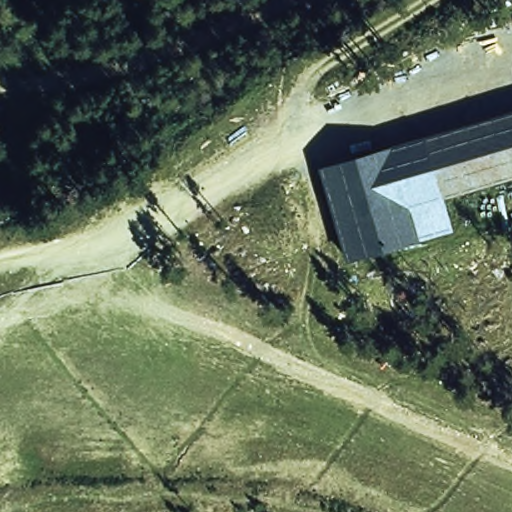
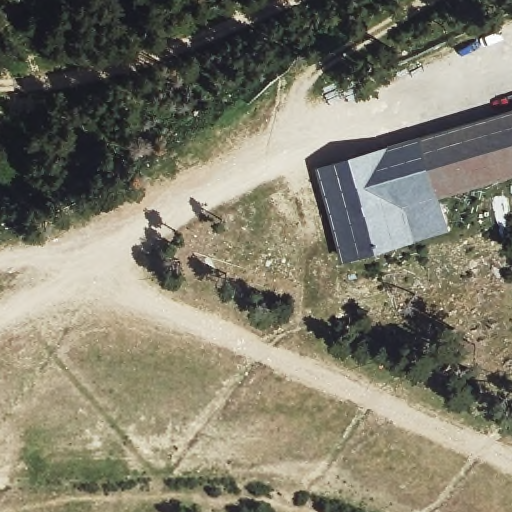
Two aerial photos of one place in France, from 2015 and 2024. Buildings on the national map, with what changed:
unchanged [(512,172),(438,193),(448,226),(345,256),(319,166),(512,110),(512,172)]

